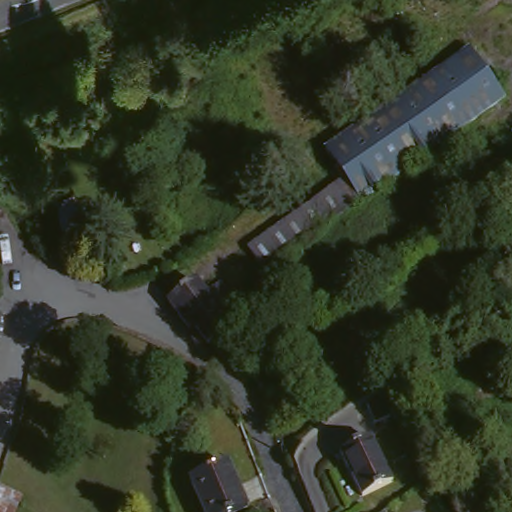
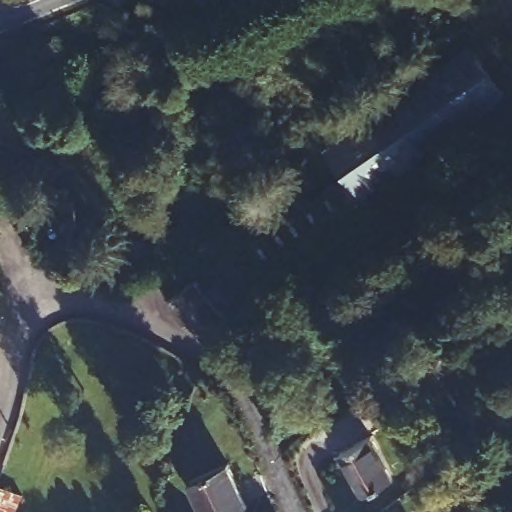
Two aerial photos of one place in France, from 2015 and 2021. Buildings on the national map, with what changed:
unchanged [(239,250),(335,180),(314,151),(461,50),(496,98),(349,202),(349,204),(255,272),(239,250)]
unchanged [(50,197),(72,189),(84,220),(62,227),(50,197)]
unchanged [(186,328),(180,331),(161,307),(191,287),(201,300),(216,289),(230,308),(215,318),(226,333),(202,350),(186,328)]
unchanged [(3,311),(0,330),(0,310),(3,311)]
unchanged [(253,378),(272,367),(285,386),(267,397),(253,378)]
unchanged [(383,421),(368,427),(361,411),(376,404),(383,421)]
unchanged [(341,453),(372,439),(391,481),(361,496),(341,453)]
unchanged [(229,465),(247,508),(239,512),(203,512),(190,482),(229,465)]
unchanged [(19,512),(0,512),(0,482),(0,481),(27,492),(19,512)]

